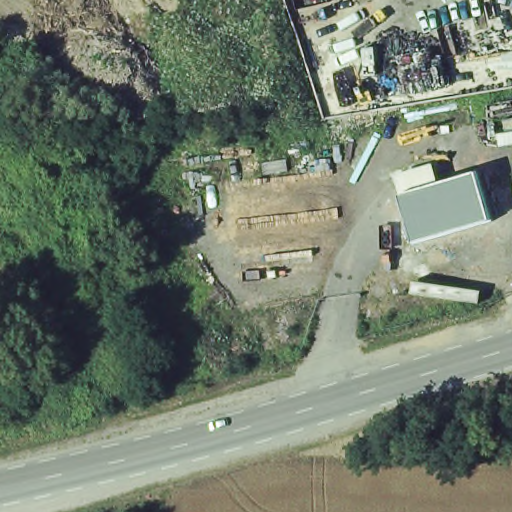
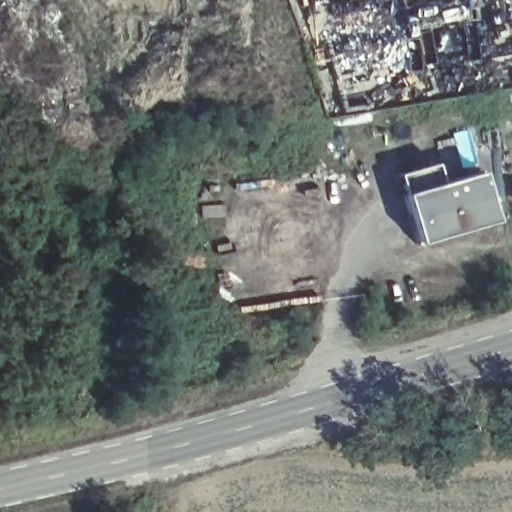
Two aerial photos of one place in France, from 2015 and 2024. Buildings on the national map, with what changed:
unchanged [(415,243),(403,195),(397,176),(433,165),(438,184),(479,174),(492,221),(415,243)]

